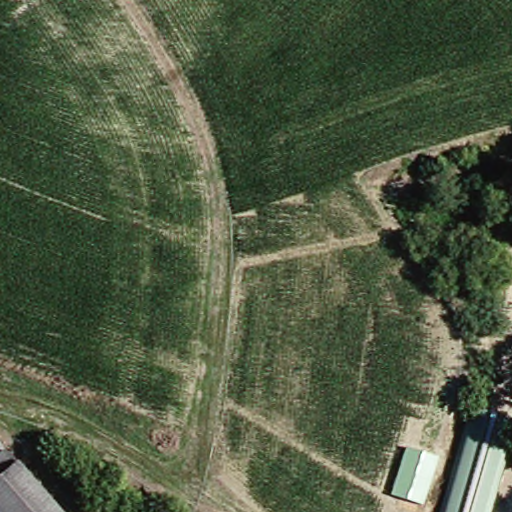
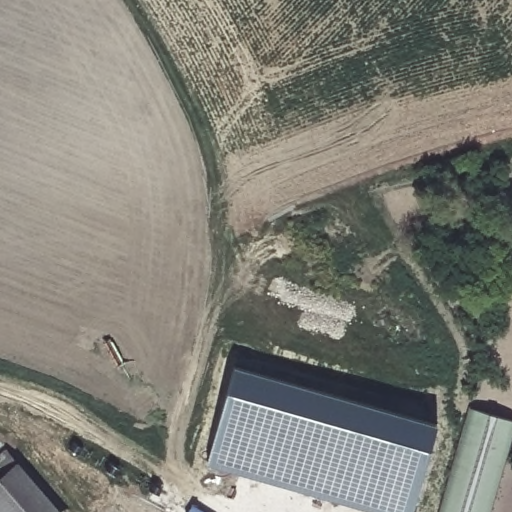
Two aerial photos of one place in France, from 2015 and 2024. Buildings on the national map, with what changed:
new [(382,512),(213,465),(240,371),(437,426),(413,512),(382,512)]
unchanged [(512,421),(512,430),(489,512),(440,512),(470,407),(512,421)]
unchanged [(8,453),(61,512),(0,512),(0,461),(8,453)]

